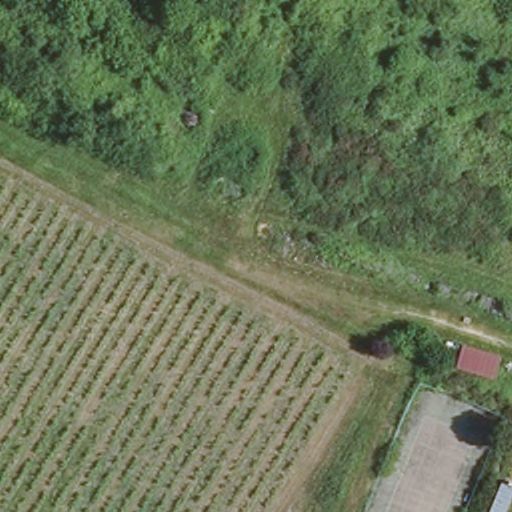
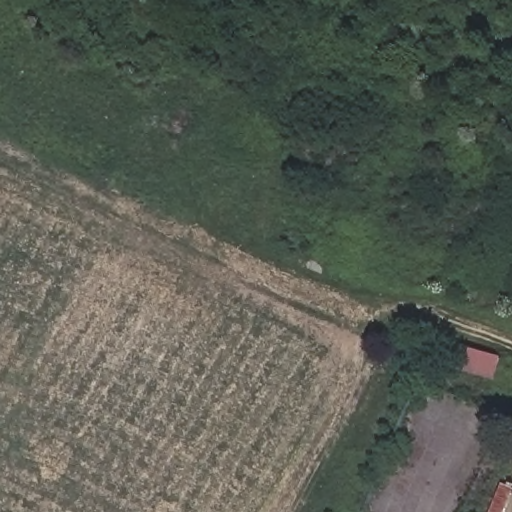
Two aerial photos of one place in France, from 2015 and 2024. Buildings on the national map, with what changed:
[]

